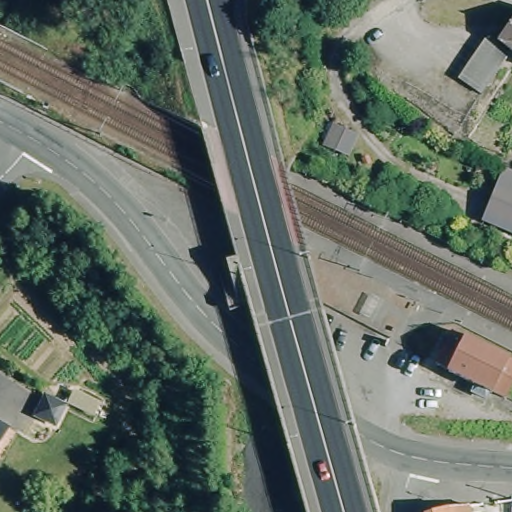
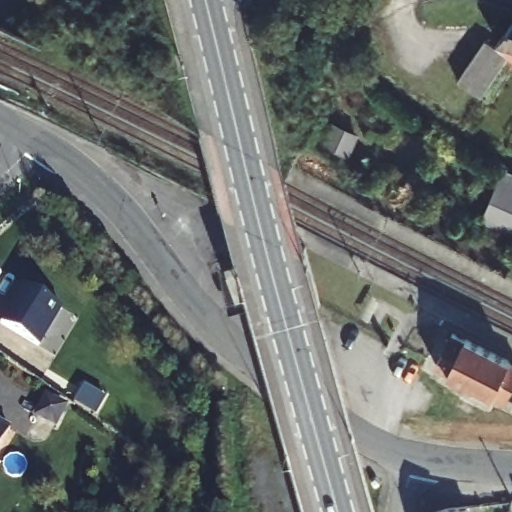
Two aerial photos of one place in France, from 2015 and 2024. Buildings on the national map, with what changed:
unchanged [(508,33),(512,26),(512,54),(501,44),(508,33)]
unchanged [(456,84),(466,70),(475,57),(484,45),(504,56),(496,68),(486,82),(477,96),(456,84)]
unchanged [(479,217),(496,182),(501,171),(503,173),(512,177),(512,233),(506,230),(479,217)]
new [(16,302),(15,301),(23,287),(61,312),(36,350),(0,326),(0,325),(16,302)]
unchanged [(489,405),(471,396),(475,387),(437,367),(453,335),(512,366),(512,393),(499,386),(489,405)]
unchanged [(7,426),(0,439),(0,422),(7,426)]
unchanged [(435,510),(450,508),(468,506),(469,512),(433,512),(435,510)]

